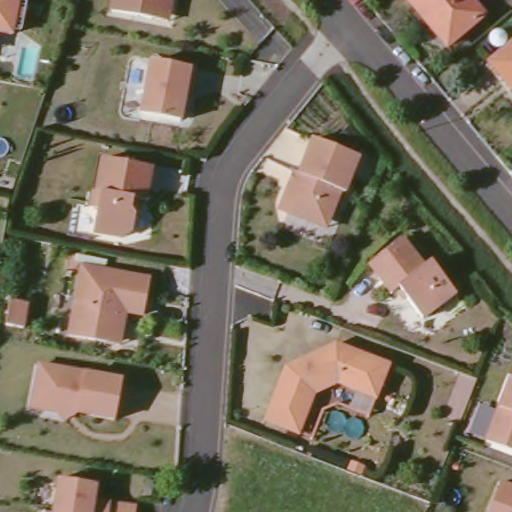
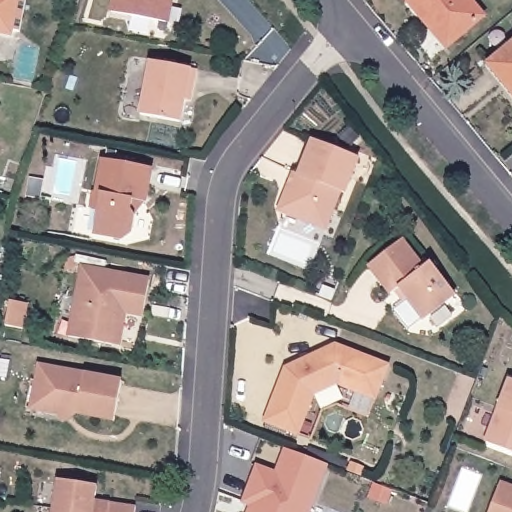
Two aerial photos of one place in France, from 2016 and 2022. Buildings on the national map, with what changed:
unchanged [(21,0),(15,28),(8,27),(7,32),(0,31),(0,0),(21,0)]
unchanged [(112,8),(113,0),(171,0),(171,3),(168,19),(152,16),(112,8)]
unchanged [(408,0),(471,0),(482,11),(445,42),(408,0)]
unchanged [(512,39),(512,95),(485,65),(512,39)]
unchanged [(184,95),(179,118),(141,110),(151,57),(195,66),(192,86),(190,96),(184,95)]
unchanged [(317,226),(286,213),(281,203),(289,185),(294,173),(299,175),(313,140),(359,159),(344,194),(341,192),(334,210),(326,229),(317,226)]
unchanged [(133,197),(131,206),(135,212),(132,228),(121,235),(93,229),(97,206),(91,204),(94,188),(97,188),(103,156),(152,165),(146,199),(133,197)]
unchanged [(424,264),(431,258),(455,290),(422,315),(399,285),(391,290),(369,262),(403,236),(424,264)]
unchanged [(113,346),(69,338),(82,268),(150,281),(143,316),(126,313),(122,331),(119,347),(113,346)]
unchanged [(10,302),(28,304),(24,329),(6,327),(10,302)]
unchanged [(336,346),(390,366),(377,399),(338,384),(315,394),(299,434),(267,422),(287,369),(336,346)]
unchanged [(115,422),(76,415),(77,412),(65,410),(59,415),(42,412),(45,394),(37,383),(40,367),(122,383),(115,422)]
unchanged [(504,376),(512,379),(512,450),(480,438),(504,376)]
new [(249,506),(241,503),(256,464),(276,472),(284,449),(328,465),(310,512),(247,512),(249,506)]
unchanged [(57,481),(97,487),(95,501),(108,503),(135,508),(134,512),(52,512),(57,481)]
unchanged [(502,486),(512,490),(512,512),(492,512),(502,486)]

